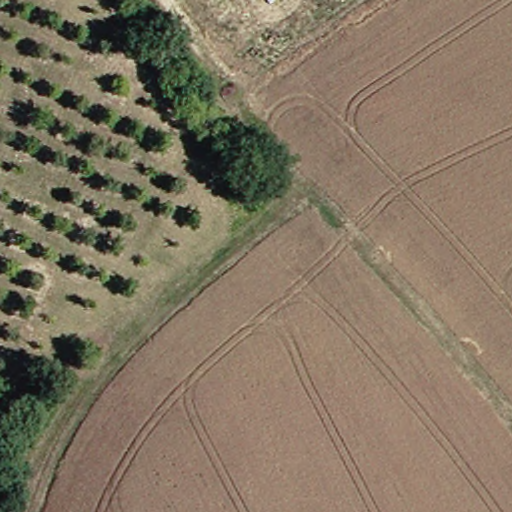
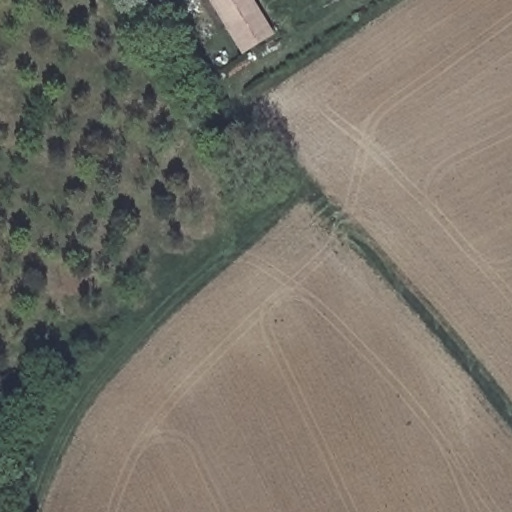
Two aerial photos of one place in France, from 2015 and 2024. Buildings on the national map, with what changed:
new [(209,0),(253,0),(274,36),(242,55),(209,0)]
unchanged [(241,155),(228,162),(213,128),(219,122),(229,119),(248,145),(239,151),(241,155)]

